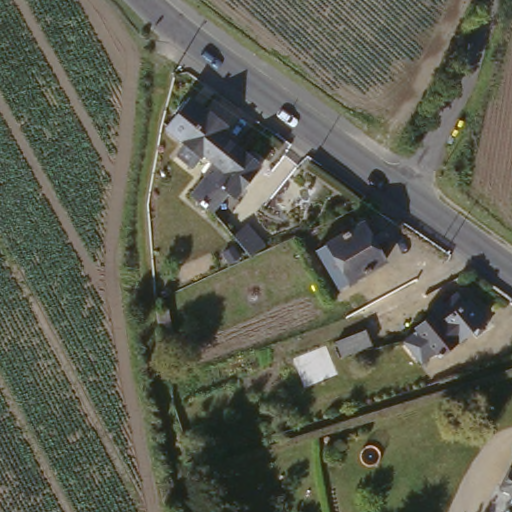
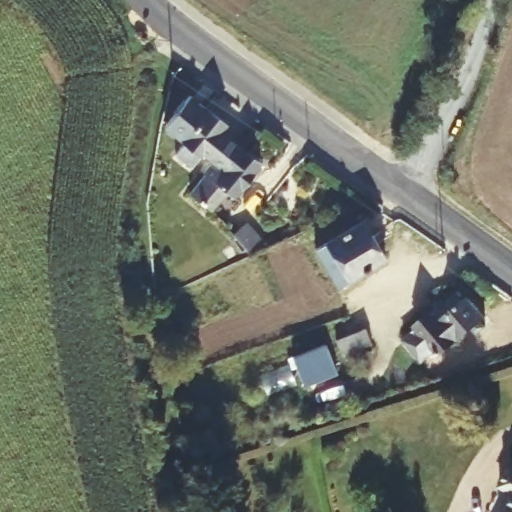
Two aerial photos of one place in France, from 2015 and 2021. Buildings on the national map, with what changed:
unchanged [(210,180),(219,167),(210,159),(206,163),(201,159),(197,165),(187,156),(192,150),(165,130),(185,99),(225,127),(218,135),(245,156),(263,170),(240,202),(213,182),(210,180)]
unchanged [(250,253),(249,252),(233,236),(236,232),(240,228),(243,225),(268,244),(250,253)]
unchanged [(319,249),(364,225),(386,265),(341,290),(319,249)]
unchanged [(463,309),(468,306),(483,326),(478,330),(482,336),(473,342),(468,336),(449,350),(437,336),(426,322),(425,322),(434,315),(431,310),(439,304),(443,309),(456,299),(463,309)]
unchanged [(166,337),(163,311),(174,310),(177,336),(166,337)]
unchanged [(426,322),(437,336),(449,350),(433,362),(430,358),(416,368),(399,345),(413,335),(411,332),(425,322),(426,322)]
unchanged [(348,347),(343,332),(365,323),(370,338),(348,347)]
new [(336,373),(305,386),(296,360),(326,348),(336,373)]
unchanged [(492,490),(503,468),(512,473),(512,512),(499,512),(506,498),(492,490)]

